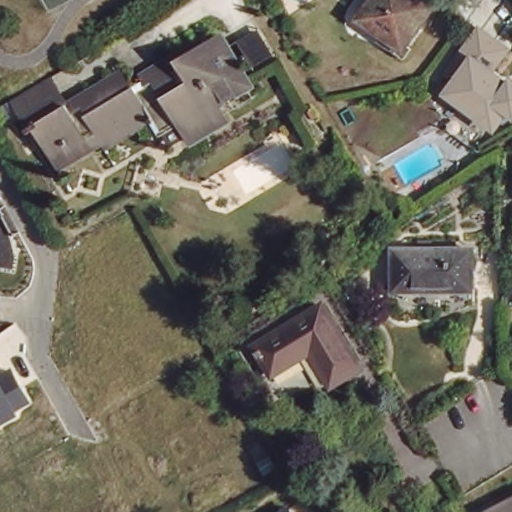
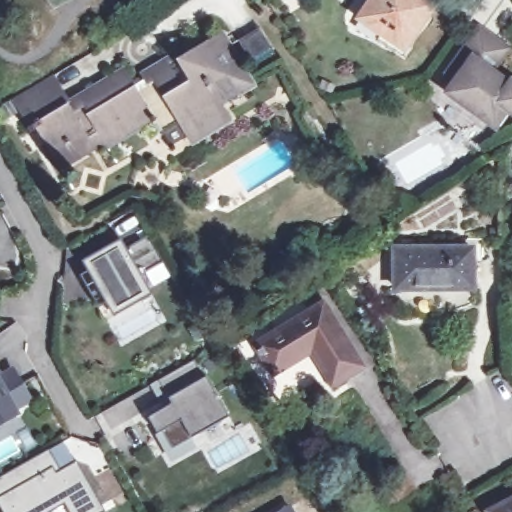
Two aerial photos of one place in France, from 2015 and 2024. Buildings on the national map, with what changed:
unchanged [(380,35),(359,20),(363,14),(372,0),(435,0),(409,39),(414,44),(408,54),(380,35)]
unchanged [(236,40),(257,27),(273,54),(251,67),(236,40)]
unchanged [(512,115),(511,114),(499,131),(452,97),(461,84),(452,78),(480,37),(494,48),(506,56),(491,79),(512,94),(512,93),(512,115)]
unchanged [(172,149),(161,131),(157,124),(156,123),(132,84),(141,79),(145,85),(153,81),(178,65),(174,59),(193,49),(197,54),(220,40),(226,52),(231,53),(231,58),(249,89),(217,107),(225,120),(215,126),(213,124),(193,136),(187,140),(172,149)]
unchanged [(157,124),(153,126),(149,119),(104,145),(100,139),(57,164),(42,139),(46,136),(40,125),(31,130),(28,133),(24,126),(28,124),(13,98),(23,93),(28,89),(49,76),(63,101),(66,104),(76,99),(74,95),(114,71),(110,64),(114,61),(123,76),(128,86),(132,84),(156,123),(157,124)]
new [(146,234),(171,276),(149,289),(125,246),(146,234)]
new [(120,237),(125,246),(149,289),(151,293),(113,317),(81,260),(120,237)]
unchanged [(394,249),(471,249),(471,288),(394,288),(394,249)]
unchanged [(314,345),(278,369),(260,340),(326,300),(363,362),(336,379),(314,345)]
new [(169,404),(156,383),(192,363),(201,379),(203,378),(226,419),(168,449),(158,432),(154,434),(145,418),(169,404)]
unchanged [(30,403),(17,413),(19,416),(0,426),(0,375),(12,368),(30,403)]
new [(63,441),(106,509),(100,512),(69,512),(64,504),(50,512),(2,512),(0,509),(0,476),(63,441)]
new [(110,468),(124,493),(106,502),(93,477),(110,468)]
unchanged [(512,507),(512,512),(502,512),(512,507)]

